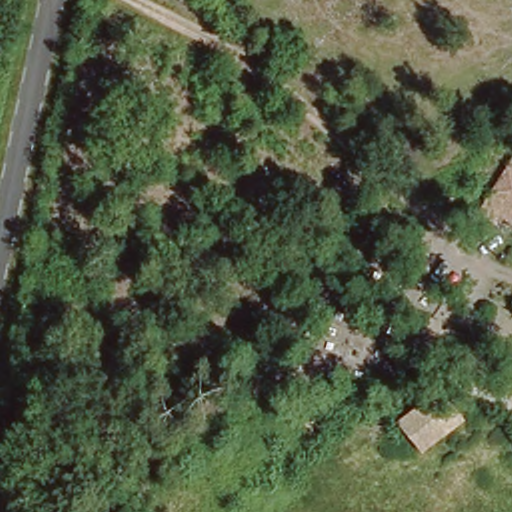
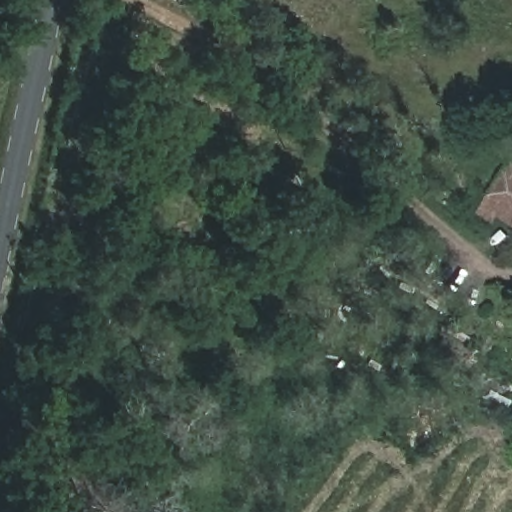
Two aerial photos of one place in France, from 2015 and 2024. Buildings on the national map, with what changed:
unchanged [(481,207),(512,162),(512,225),(511,227),(481,207)]
unchanged [(512,225),(512,228),(511,227),(512,225)]
unchanged [(457,415),(423,453),(399,429),(435,392),(457,415)]

